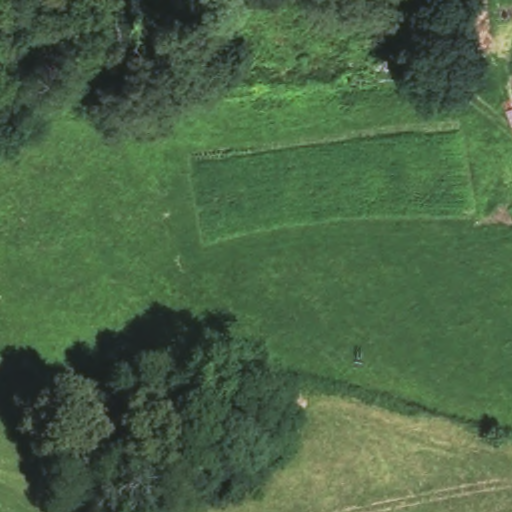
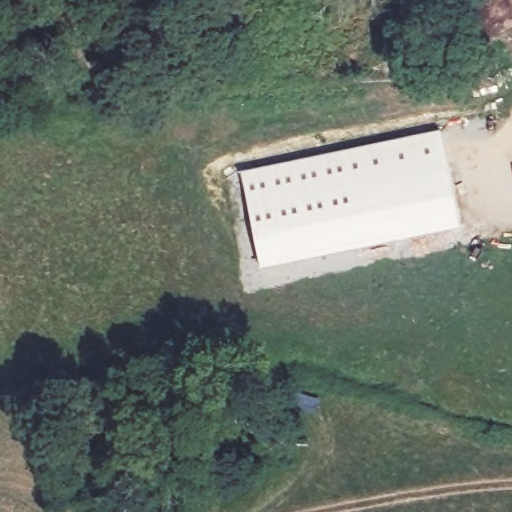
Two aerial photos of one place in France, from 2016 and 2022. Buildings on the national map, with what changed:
new [(461,230),(262,271),(242,173),(442,131),(461,230)]

